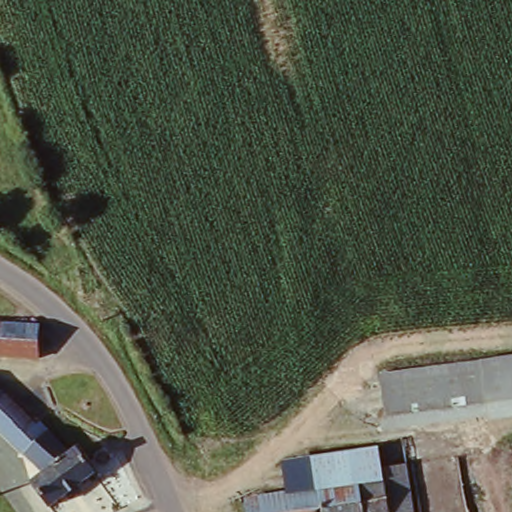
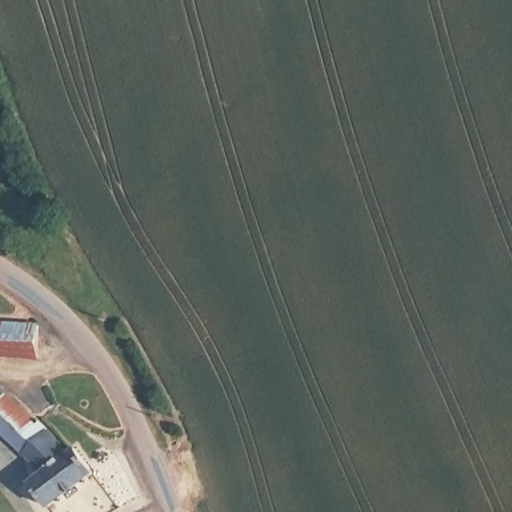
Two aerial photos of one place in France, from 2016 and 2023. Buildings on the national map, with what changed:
unchanged [(46,324),(44,356),(0,353),(0,321),(46,324)]
demolished [(512,354),(512,420),(491,423),(491,419),(483,358),(512,354)]
demolished [(483,358),(491,419),(388,428),(379,371),(483,358)]
unchanged [(20,402),(42,427),(48,425),(77,454),(83,449),(102,477),(58,509),(38,483),(47,473),(0,425),(0,385),(20,402)]
demolished [(390,471),(412,468),(418,512),(368,512),(364,486),(391,482),(390,471)]
demolished [(256,512),(254,503),(299,496),(364,486),(368,512),(256,512)]

